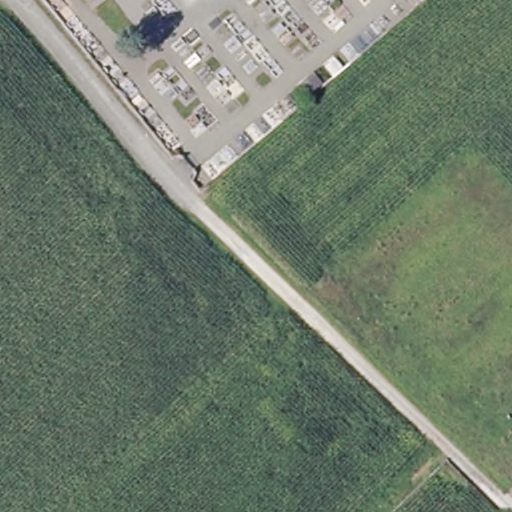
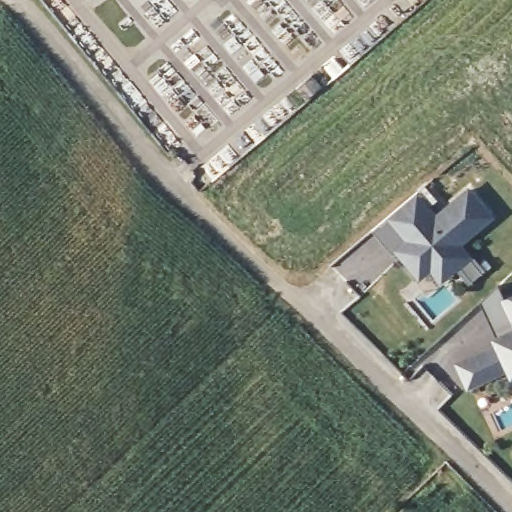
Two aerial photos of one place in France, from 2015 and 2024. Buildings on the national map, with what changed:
new [(417,282),(423,277),(407,259),(422,246),(395,214),(421,193),(433,208),(431,210),(439,219),(472,192),(494,218),(461,245),(472,258),(458,269),(428,294),(417,282)]
new [(422,246),(407,259),(402,263),(375,231),(395,214),(422,246)]
new [(512,321),(512,331),(494,340),(478,303),(497,286),(504,302),(512,321)]
new [(512,298),(512,321),(504,302),(512,298)]
new [(507,369),(466,387),(456,366),(498,347),(494,340),(512,331),(512,379),(511,376),(507,369)]

